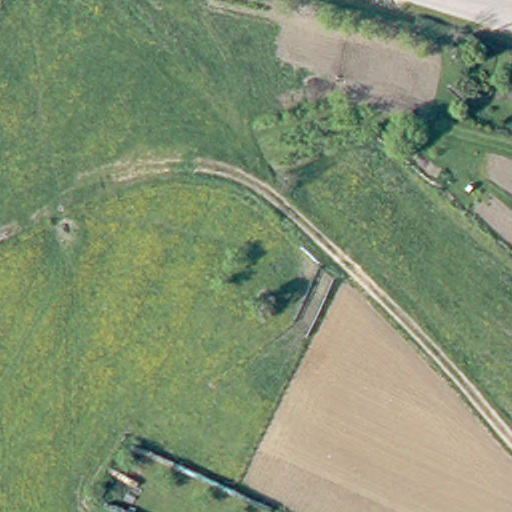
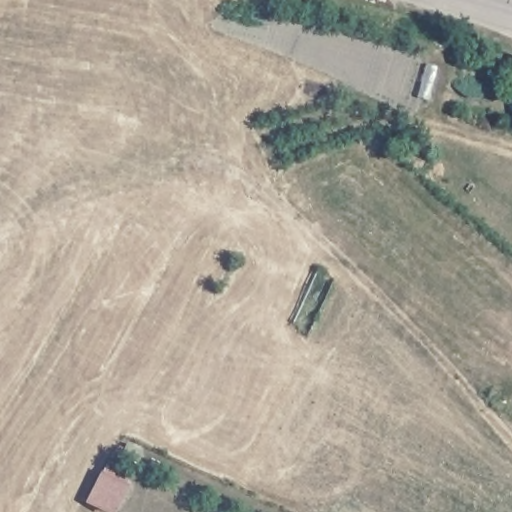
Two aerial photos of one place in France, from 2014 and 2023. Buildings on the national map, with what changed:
new [(103,512),(85,502),(102,470),(132,486),(118,512),(103,512)]

